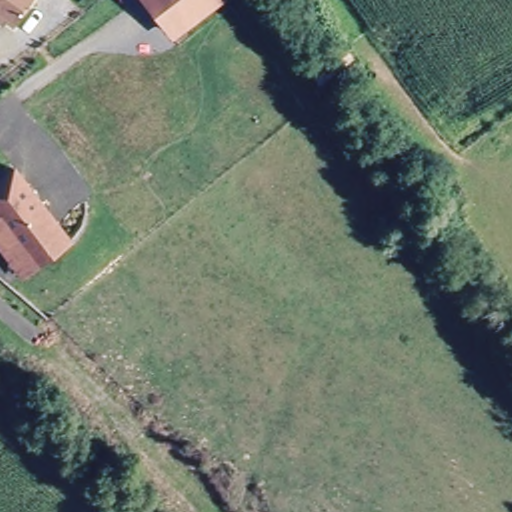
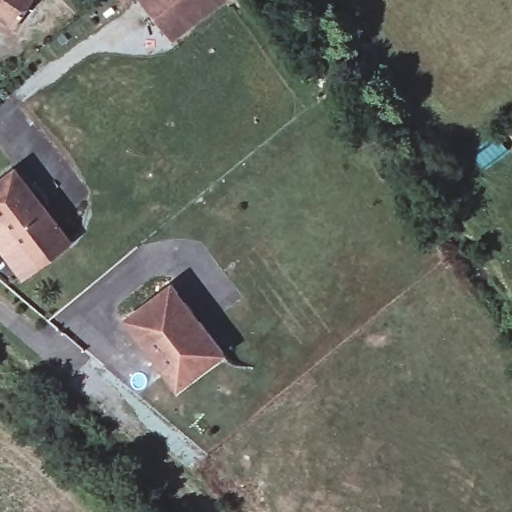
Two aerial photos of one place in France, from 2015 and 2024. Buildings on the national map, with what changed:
unchanged [(0,18),(0,0),(36,0),(16,30),(0,18)]
unchanged [(145,0),(215,0),(171,34),(145,0)]
unchanged [(28,248),(4,217),(1,220),(0,218),(0,180),(16,167),(60,224),(28,248)]
unchanged [(25,274),(0,241),(0,221),(1,220),(4,217),(28,248),(60,224),(71,239),(25,274)]
new [(178,390),(119,320),(171,281),(225,353),(178,390)]

